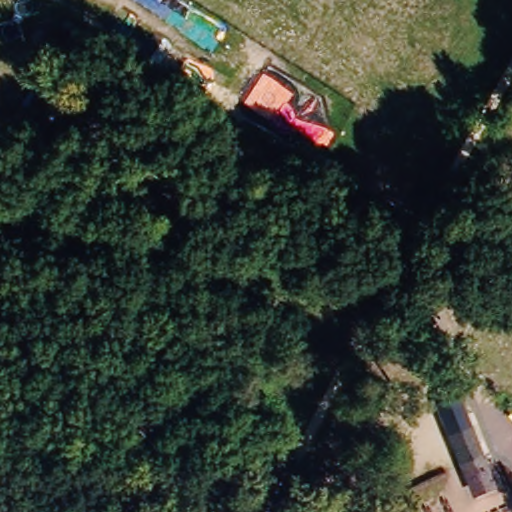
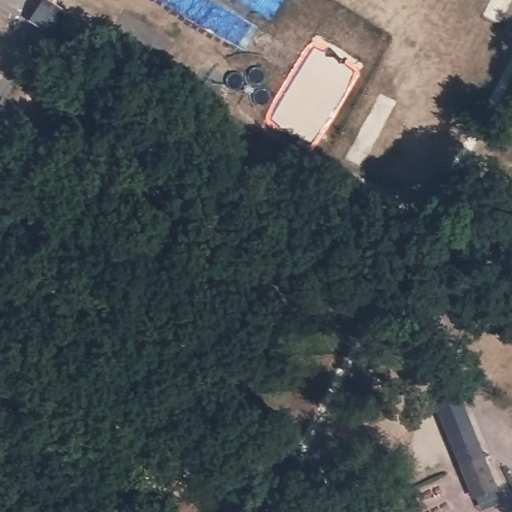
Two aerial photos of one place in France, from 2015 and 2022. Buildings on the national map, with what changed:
unchanged [(70,46),(55,38),(65,21),(80,31),(70,46)]
unchanged [(497,496),(475,502),(437,405),(457,397),(497,496)]

